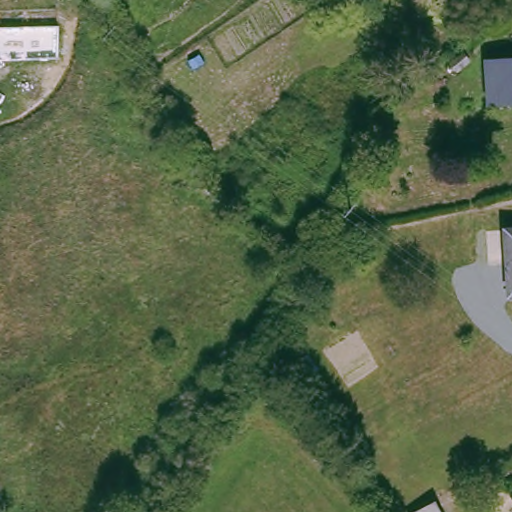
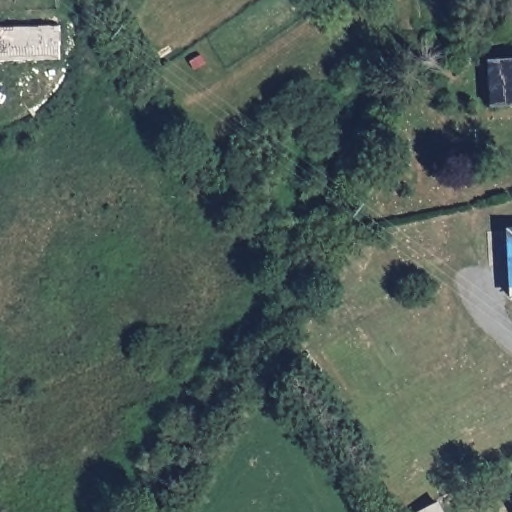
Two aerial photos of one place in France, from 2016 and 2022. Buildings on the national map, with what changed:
unchanged [(58,57),(0,60),(0,28),(58,26),(58,57)]
unchanged [(512,100),(486,102),(482,61),(512,58),(512,100)]
unchanged [(504,225),(512,225),(512,290),(506,290),(504,225)]
unchanged [(416,511),(432,503),(436,512),(415,512),(416,511)]
unchanged [(512,506),(512,512),(510,512),(508,508),(512,506)]

